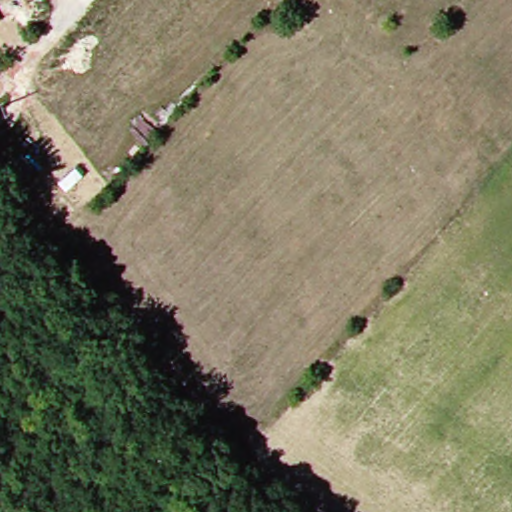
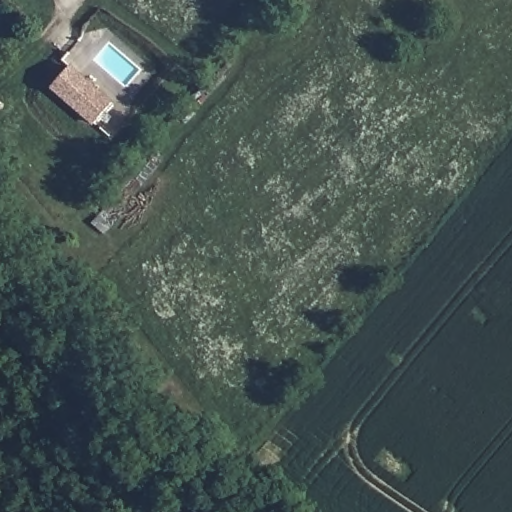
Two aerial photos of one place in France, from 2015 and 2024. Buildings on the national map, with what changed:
new [(112,101),(92,124),(51,89),(72,65),(112,101)]

